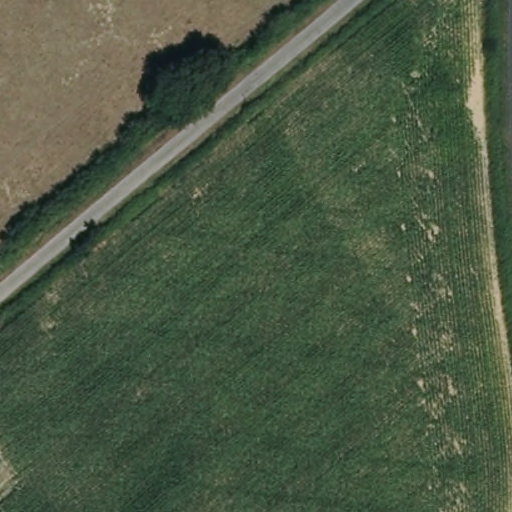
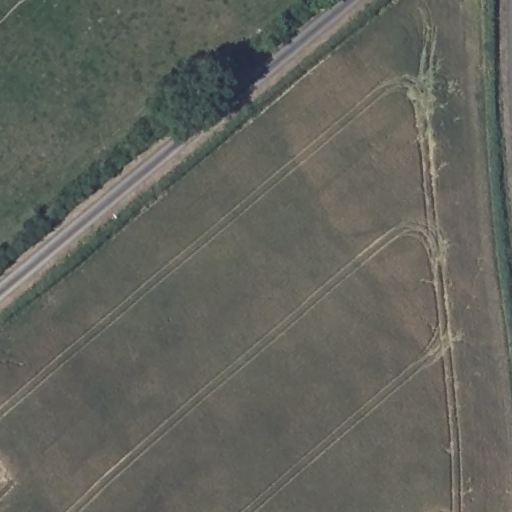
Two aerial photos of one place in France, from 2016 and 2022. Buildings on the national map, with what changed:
[]

